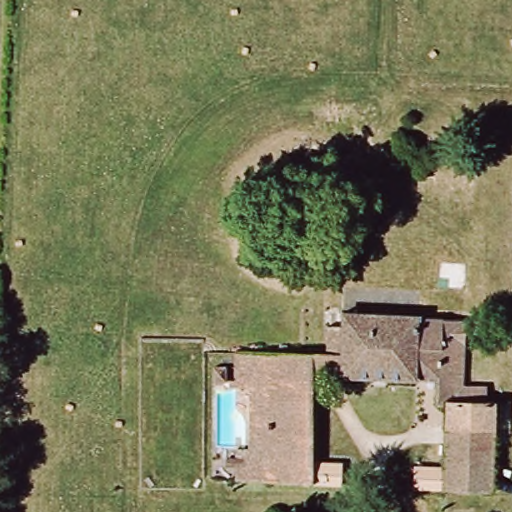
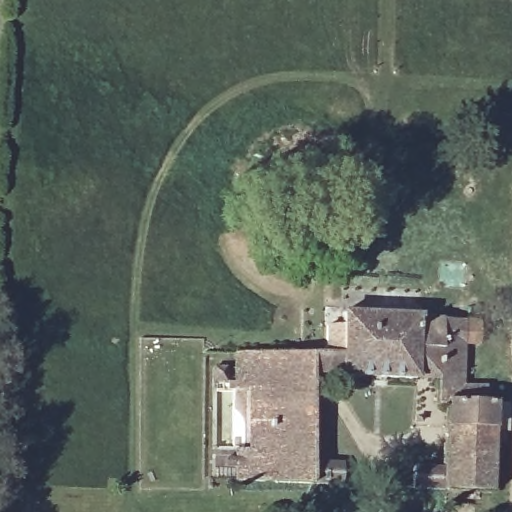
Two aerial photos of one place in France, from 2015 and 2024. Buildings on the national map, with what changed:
unchanged [(457,509),(457,492),(415,491),(416,468),(445,470),(446,404),(438,404),(440,382),(342,380),(342,358),(327,358),(327,330),(341,330),(342,316),(485,321),(485,344),(460,344),(458,401),(496,401),(494,493),(493,510),(457,509)]
unchanged [(312,459),(343,460),(342,484),(269,482),(268,390),(255,390),(237,389),(236,352),(310,354),(312,459)]
unchanged [(240,480),(237,447),(255,447),(255,390),(268,390),(269,482),(240,480)]

